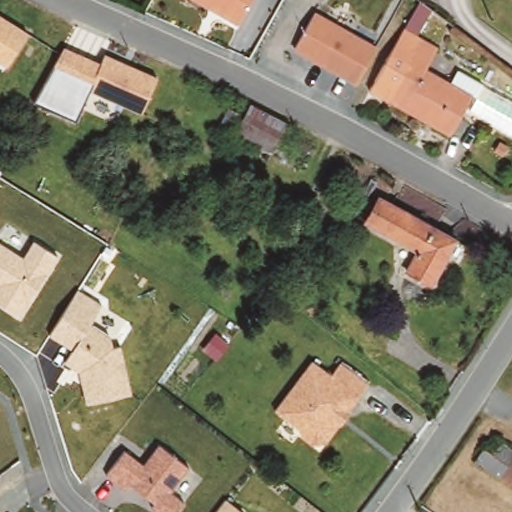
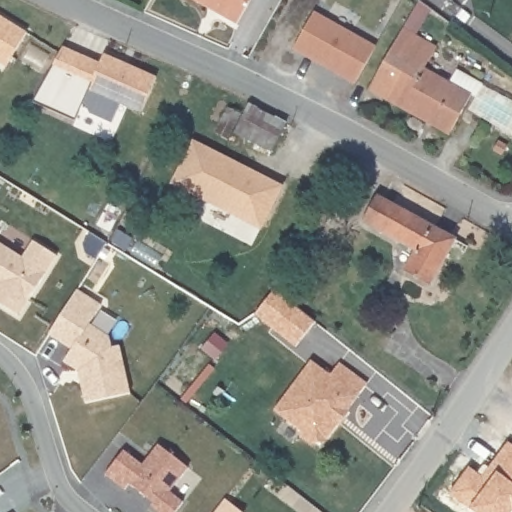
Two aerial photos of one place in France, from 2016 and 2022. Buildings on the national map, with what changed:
unchanged [(236,26),(189,0),(250,0),(236,26)]
unchanged [(373,51),(352,85),(294,49),(314,15),(373,51)]
unchanged [(28,34),(7,67),(0,63),(0,16),(28,34)]
unchanged [(420,120),(367,89),(401,27),(431,45),(419,65),(468,95),(447,128),(443,134),(420,120)]
unchanged [(67,94),(86,101),(77,123),(33,104),(63,49),(81,56),(67,94)]
unchanged [(101,64),(104,56),(155,78),(142,114),(92,94),(89,102),(67,94),(81,56),(101,64)]
unchanged [(282,129),(266,155),(231,134),(246,107),(282,129)]
new [(285,185),(264,230),(169,185),(193,138),(285,185)]
unchanged [(381,205),(451,245),(426,288),(403,275),(413,256),(365,228),(381,205)]
unchanged [(24,258),(33,241),(58,257),(19,317),(0,305),(0,244),(24,258)]
new [(275,283),(313,319),(291,342),(253,307),(275,283)]
unchanged [(81,371),(67,363),(75,349),(51,335),(79,290),(103,305),(91,326),(121,345),(131,395),(88,403),(81,371)]
unchanged [(337,408),(300,378),(310,363),(329,375),(335,365),(362,383),(342,413),(337,408)]
unchanged [(337,408),(327,413),(326,417),(330,420),(318,439),(311,440),(273,415),(300,378),(337,408)]
demolished [(465,409),(467,405),(496,425),(487,437),(459,417),(465,409)]
demolished [(504,455),(512,461),(512,492),(489,477),(469,464),(484,442),(504,455)]
unchanged [(159,445),(190,468),(171,493),(184,503),(177,512),(155,512),(148,507),(152,502),(130,485),(125,491),(104,475),(123,450),(144,465),(159,445)]
unchanged [(242,512),(215,512),(225,500),(242,512)]

